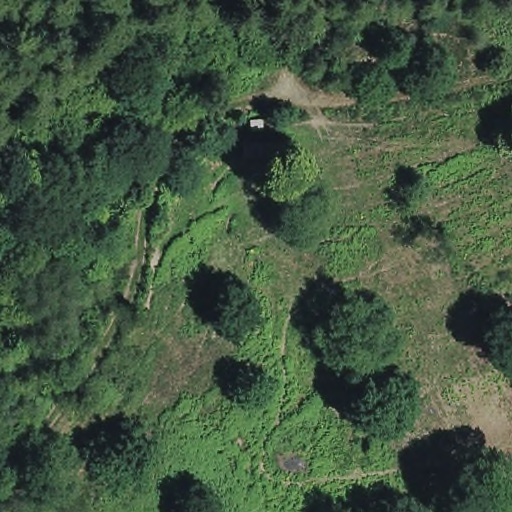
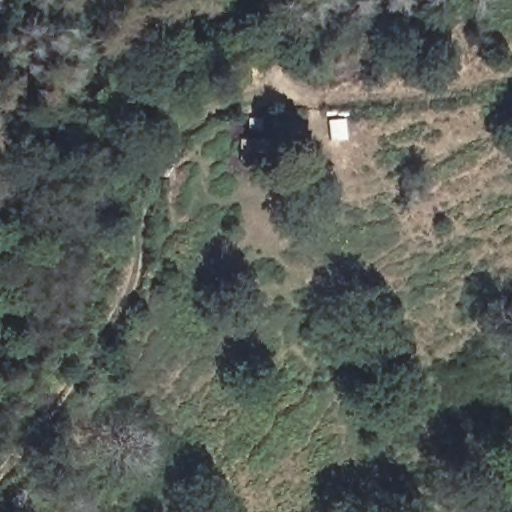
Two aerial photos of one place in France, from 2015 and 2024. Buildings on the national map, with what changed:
unchanged [(266,136),(263,159),(237,156),(244,135),(266,136)]

